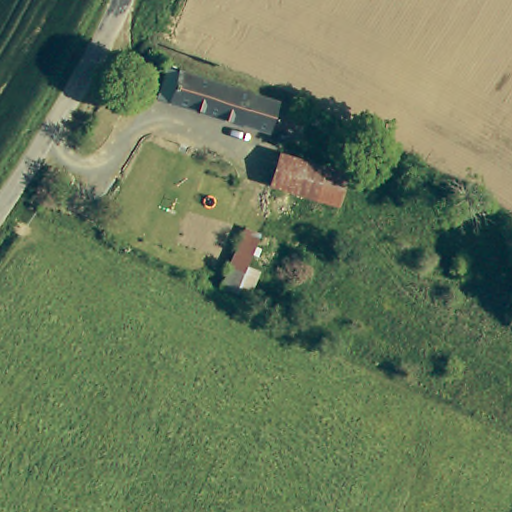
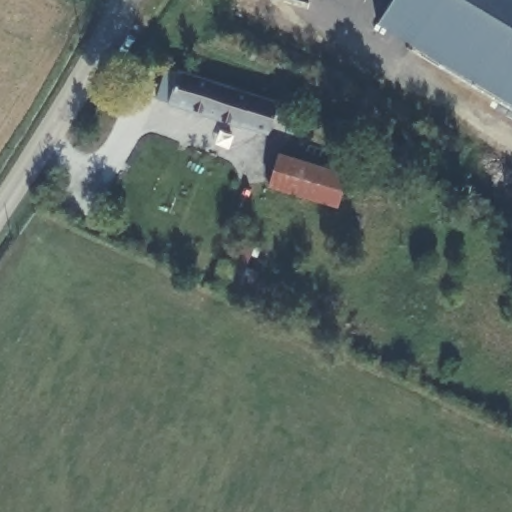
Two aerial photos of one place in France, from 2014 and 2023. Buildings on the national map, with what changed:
new [(376,23),(390,0),(512,0),(512,103),(376,23)]
unchanged [(280,103),(274,126),(248,119),(244,126),(158,99),(168,67),(280,103)]
unchanged [(338,204),(326,202),(295,193),(269,185),(279,152),(335,168),(346,171),(338,204)]
unchanged [(252,200),(270,207),(255,263),(264,266),(253,298),(222,287),(252,200)]

